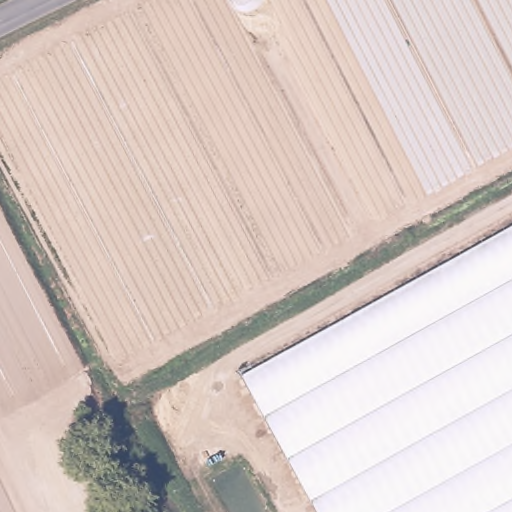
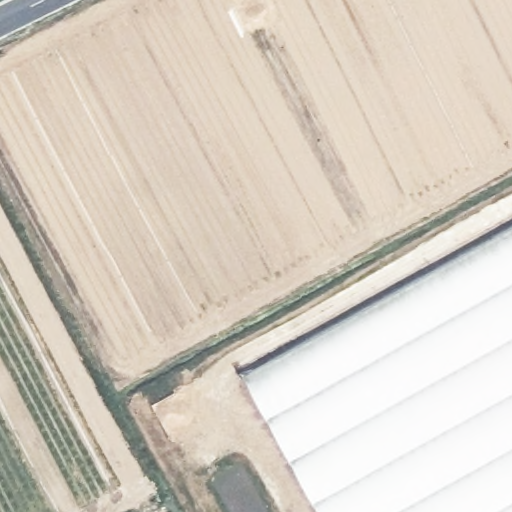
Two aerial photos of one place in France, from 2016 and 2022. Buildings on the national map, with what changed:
unchanged [(512,222),(512,512),(317,512),(240,372),(512,222)]

